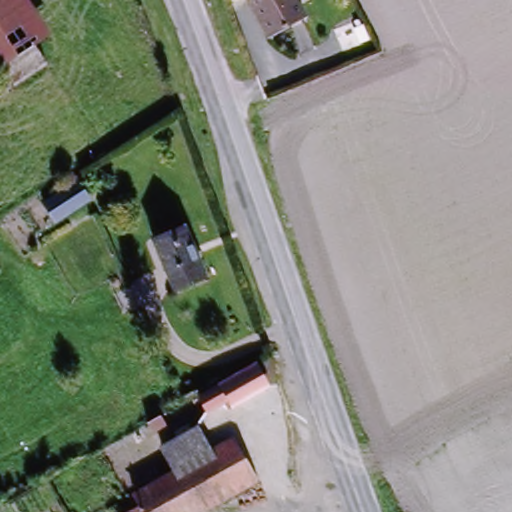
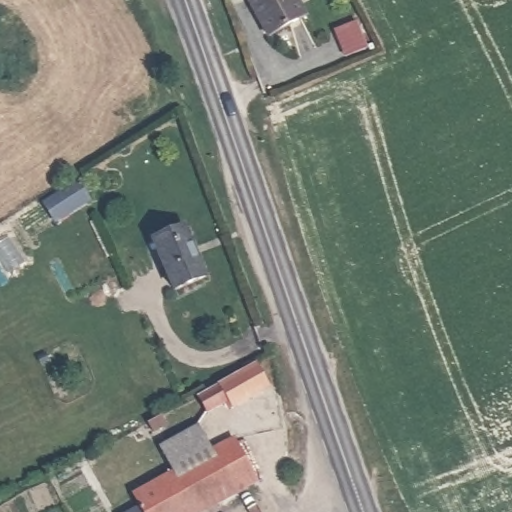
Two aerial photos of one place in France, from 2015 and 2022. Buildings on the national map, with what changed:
demolished [(0,0),(31,0),(53,36),(35,45),(51,70),(7,94),(0,83),(0,0)]
unchanged [(265,42),(246,5),(256,0),(293,0),(304,21),(265,42)]
unchanged [(43,204),(81,184),(92,208),(56,230),(43,204)]
unchanged [(150,239),(186,226),(207,286),(171,299),(150,239)]
unchanged [(254,373),(267,396),(230,417),(225,409),(204,420),(196,404),(254,373)]
unchanged [(150,497),(145,488),(178,468),(165,446),(197,427),(210,449),(241,432),(265,474),(198,512),(129,512),(150,497)]

